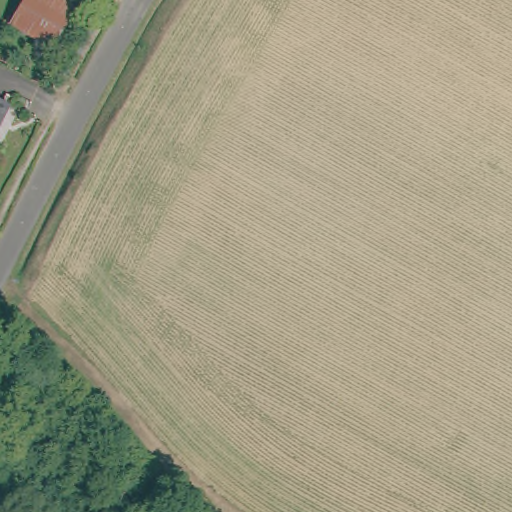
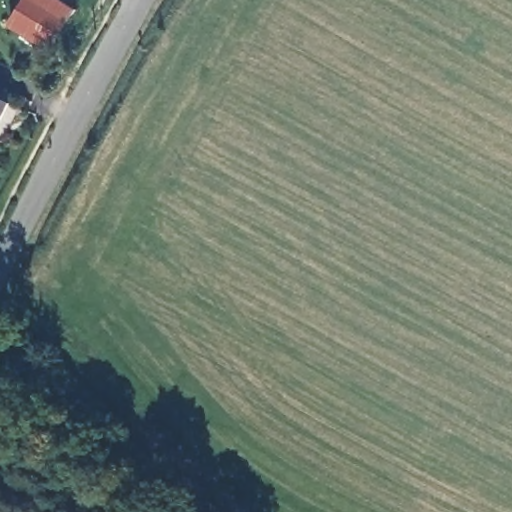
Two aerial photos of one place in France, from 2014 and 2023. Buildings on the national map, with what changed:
unchanged [(71,9),(56,48),(13,33),(24,0),(47,0),(71,9)]
unchanged [(15,107),(0,137),(0,98),(15,107)]

